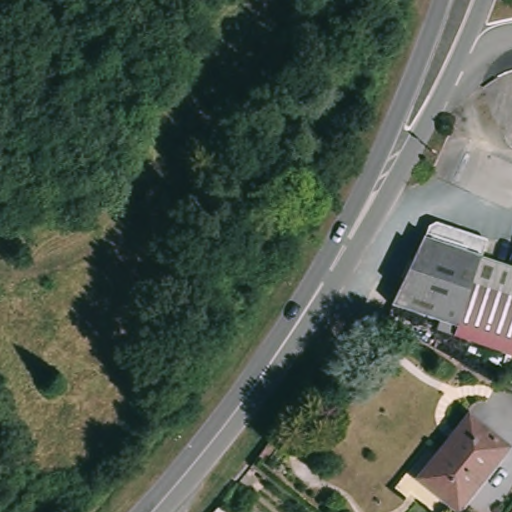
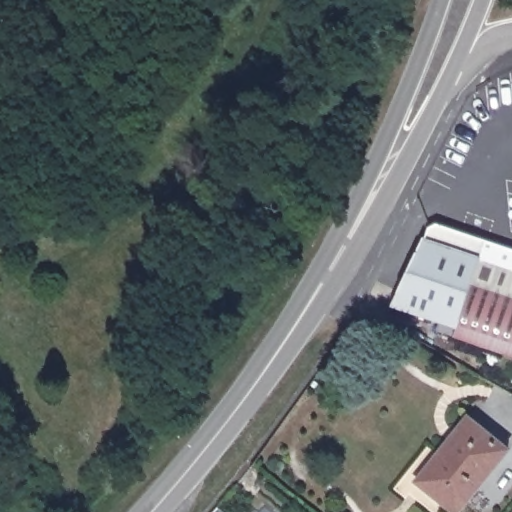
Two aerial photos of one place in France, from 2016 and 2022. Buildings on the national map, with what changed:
unchanged [(449,340),(452,330),(445,328),(387,309),(419,239),(422,240),(426,232),(432,228),(458,237),(482,245),(477,260),(494,266),(511,271),(512,272),(512,360),(490,353),(449,340)]
unchanged [(512,267),(512,272),(511,271),(512,267)]
unchanged [(456,512),(448,512),(413,485),(465,421),(503,453),(456,512)]

